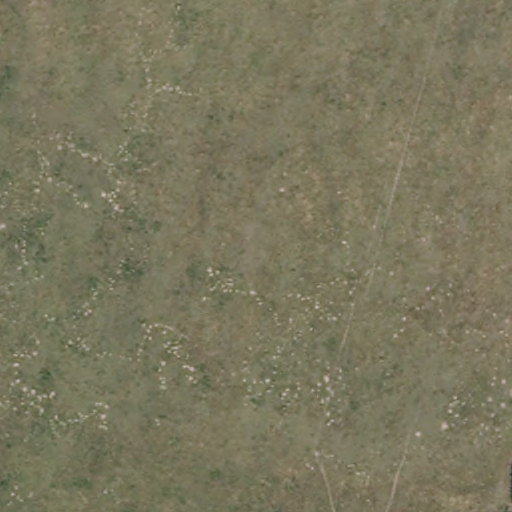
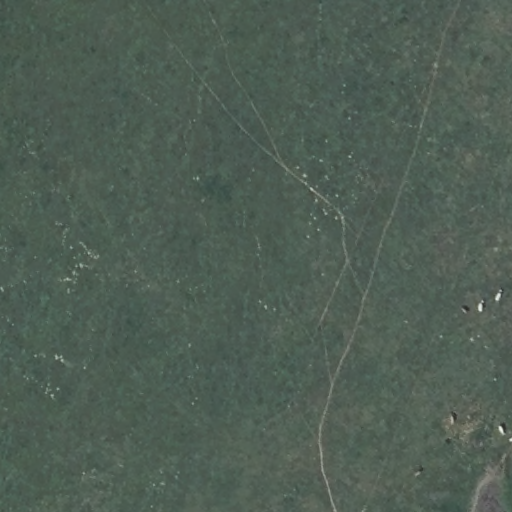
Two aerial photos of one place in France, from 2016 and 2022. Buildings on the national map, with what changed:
[]

